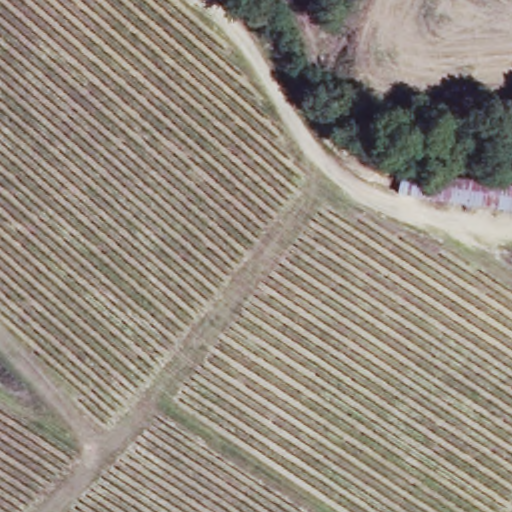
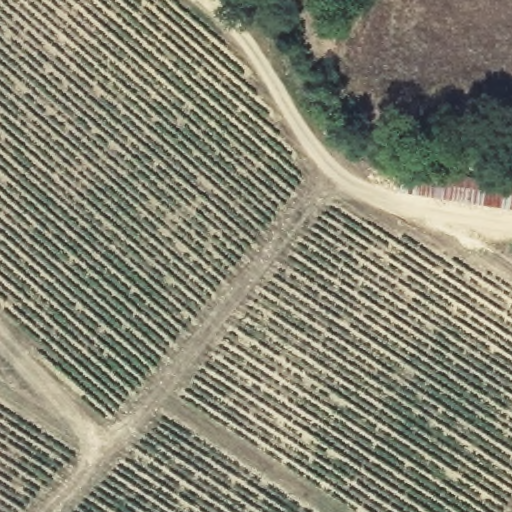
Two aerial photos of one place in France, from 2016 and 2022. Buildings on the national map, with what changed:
unchanged [(402,168),(512,184),(512,209),(397,194),(402,168)]

